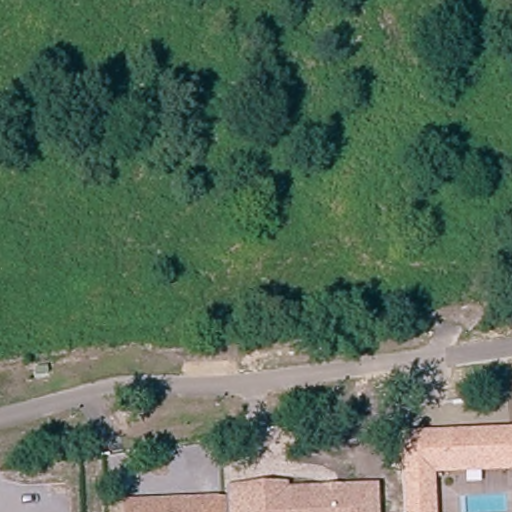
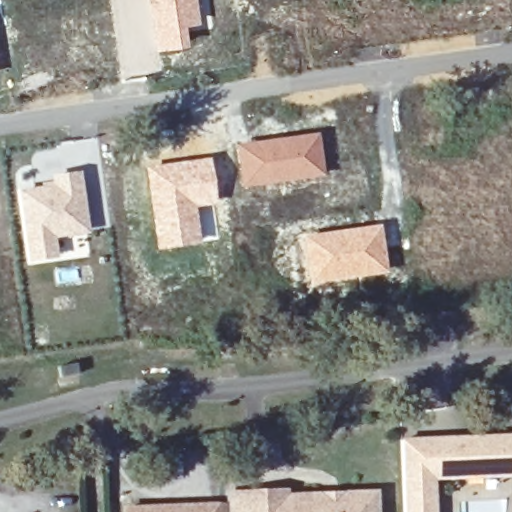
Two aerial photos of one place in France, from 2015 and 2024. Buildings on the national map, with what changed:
new [(185,25),(188,45),(155,50),(148,0),(197,0),(200,23),(185,25)]
new [(318,132),(324,176),(241,188),(235,145),(318,132)]
new [(210,158),(217,204),(195,207),(200,244),(155,251),(144,168),(210,158)]
new [(89,232),(55,237),(58,258),(30,262),(19,190),(41,187),(40,184),(52,183),(51,175),(80,172),(89,232)]
new [(380,224),(388,273),(309,285),(302,236),(380,224)]
unchanged [(400,437),(512,433),(512,477),(435,481),(436,512),(403,512),(400,437)]
unchanged [(122,506),(226,502),(226,489),(286,486),(287,492),(377,489),(379,512),(122,512),(122,506)]

